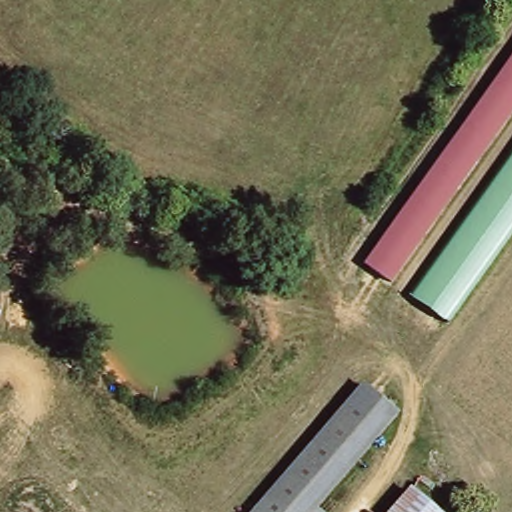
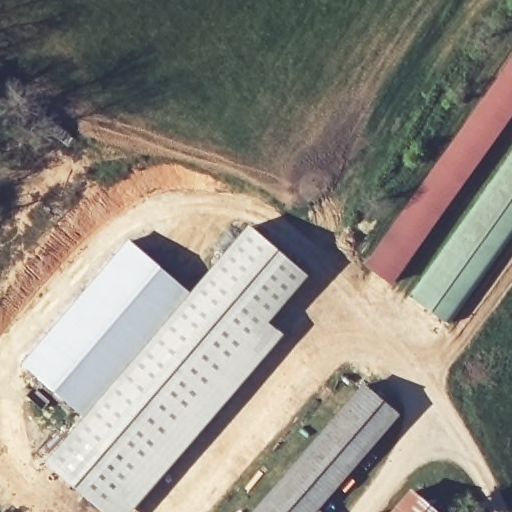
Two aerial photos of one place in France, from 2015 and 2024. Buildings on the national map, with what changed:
unchanged [(512,62),(512,118),(403,286),(378,268),(512,62)]
unchanged [(512,157),(512,246),(457,330),(416,303),(512,157)]
new [(269,323),(283,335),(132,512),(101,512),(45,463),(82,419),(21,365),(127,240),(190,295),(250,225),(309,275),(269,323)]
unchanged [(355,385),(389,413),(313,509),(317,512),(255,512),(355,385)]
unchanged [(411,490),(439,512),(394,512),(411,490)]

